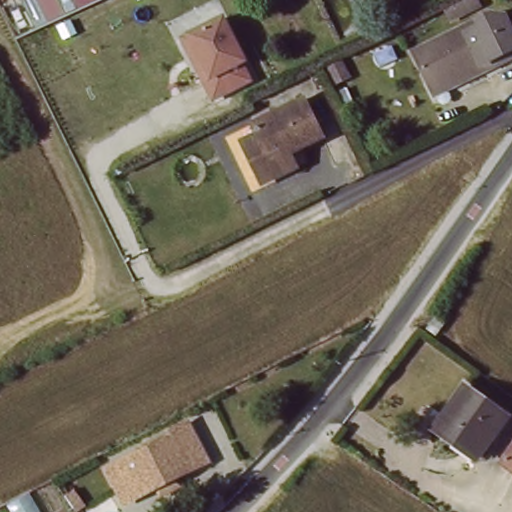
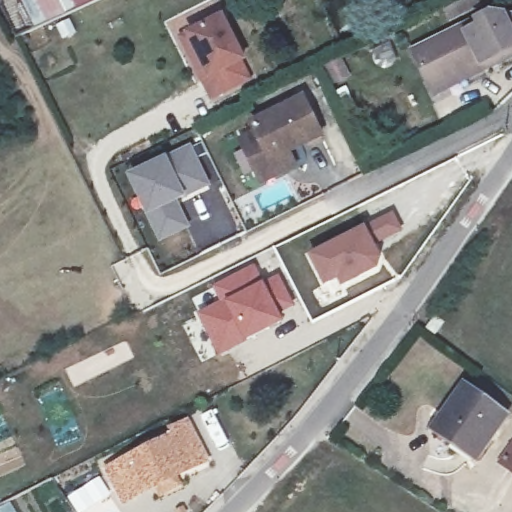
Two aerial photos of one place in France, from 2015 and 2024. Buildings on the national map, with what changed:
unchanged [(43,33),(32,5),(40,0),(81,0),(87,17),(43,33)]
unchanged [(455,34),(472,25),(493,13),(512,15),(512,49),(497,56),(499,60),(474,73),(470,65),(430,85),(412,49),(452,27),(455,34)]
unchanged [(247,60),(252,79),(215,101),(208,84),(183,38),(224,15),(247,60)]
unchanged [(279,169),(257,179),(238,139),(254,131),(250,121),(302,96),(321,133),(287,150),(292,162),(279,169)]
new [(190,151),(208,186),(176,202),(180,211),(156,225),(132,177),(190,151)]
new [(366,227),(394,212),(404,232),(375,246),(384,260),(378,271),(342,290),(339,280),(326,287),(309,255),(366,227)]
new [(225,303),(218,289),(254,270),(264,287),(278,280),(293,307),(279,315),(282,320),(248,339),(221,355),(201,315),(225,303)]
unchanged [(506,418),(478,455),(442,427),(469,390),(506,418)]
unchanged [(124,500),(108,468),(173,437),(169,427),(188,418),(208,458),(177,474),(156,484),(124,500)]
unchanged [(512,450),(512,470),(502,463),(512,450)]

